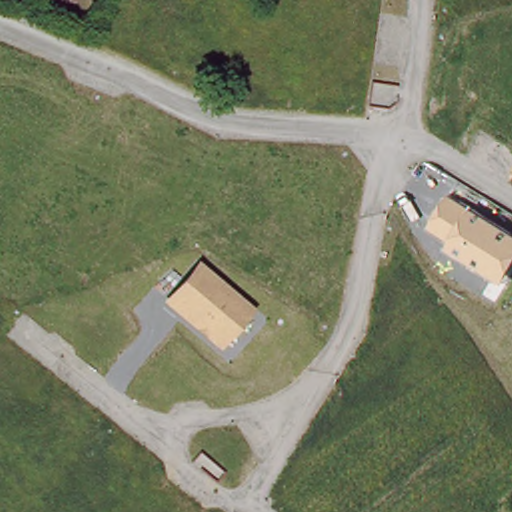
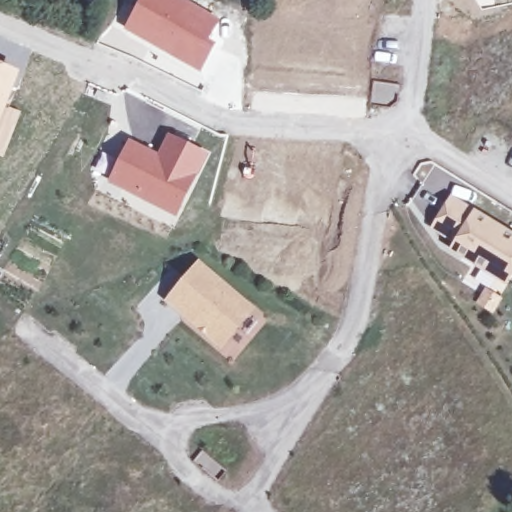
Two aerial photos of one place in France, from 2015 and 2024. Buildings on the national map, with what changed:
new [(139,0),(186,0),(219,19),(209,39),(215,43),(200,72),(123,28),(139,0)]
new [(3,157),(0,156),(0,62),(21,70),(8,105),(22,111),(3,157)]
new [(129,137),(157,152),(168,132),(209,153),(176,217),(106,180),(129,137)]
unchanged [(512,236),(512,273),(503,288),(445,251),(450,243),(427,228),(447,193),(512,236)]
unchanged [(197,260),(253,309),(219,349),(162,302),(197,260)]

